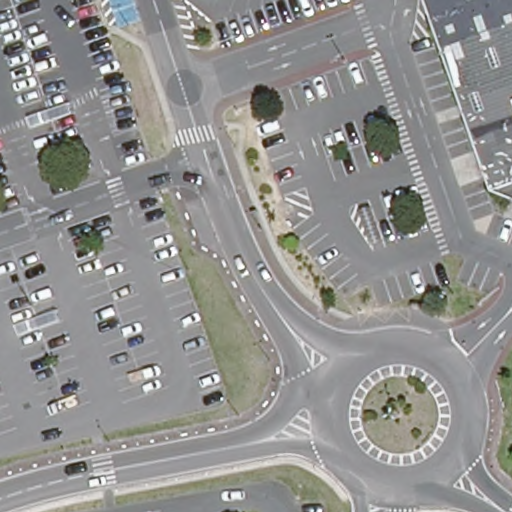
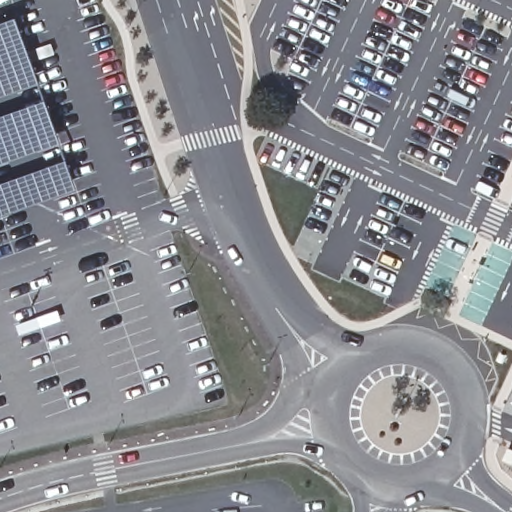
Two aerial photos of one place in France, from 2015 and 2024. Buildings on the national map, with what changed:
demolished [(491,184),(457,81),(434,12),(430,0),(512,0),(512,193),(491,184)]
new [(68,175),(0,199),(0,36),(16,31),(68,175)]

